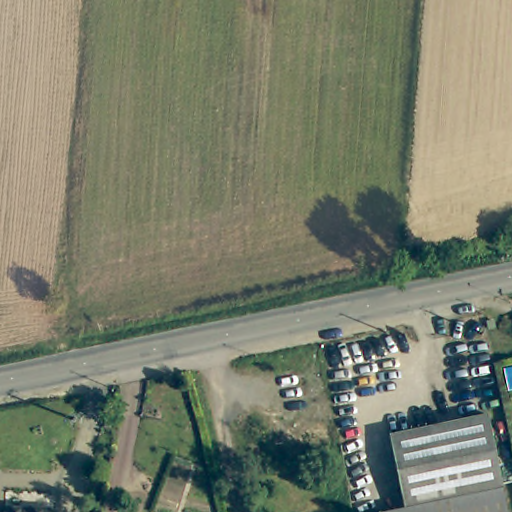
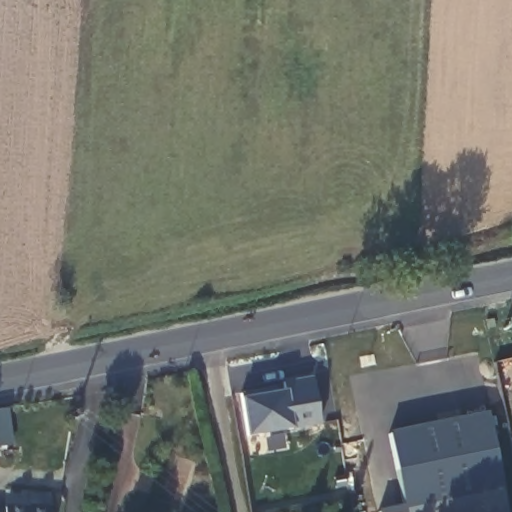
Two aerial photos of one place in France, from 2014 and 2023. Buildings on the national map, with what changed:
new [(320,427),(293,431),(248,438),(241,399),(284,391),(282,382),(310,377),(320,427)]
new [(13,444),(0,446),(0,411),(6,410),(13,444)]
unchanged [(489,414),(509,512),(380,512),(380,511),(404,507),(391,434),(489,414)]
unchanged [(6,508),(53,510),(52,512),(0,512),(0,511),(6,511),(6,508)]

